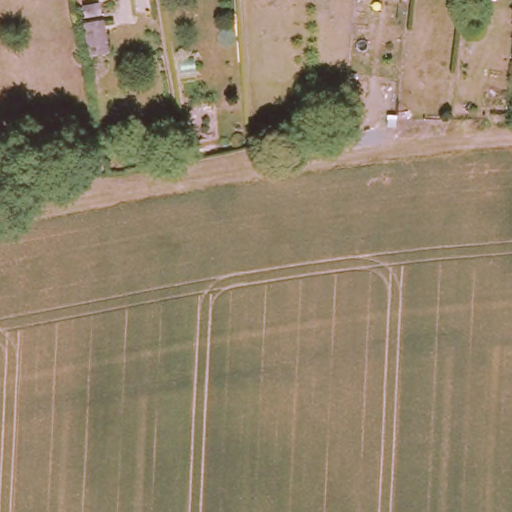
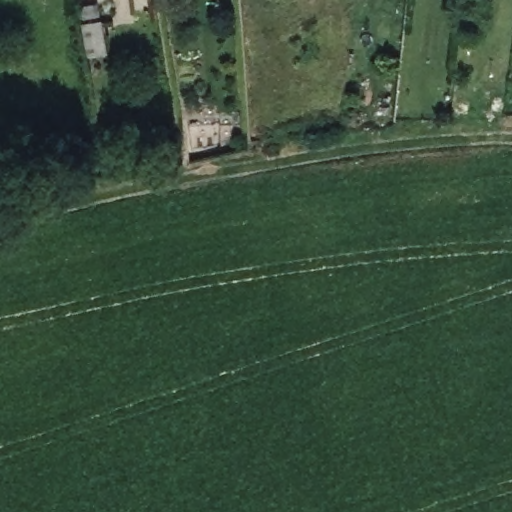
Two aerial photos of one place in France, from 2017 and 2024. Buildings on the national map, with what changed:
unchanged [(85,14),(83,3),(85,2),(95,0),(100,0),(100,3),(102,11),(85,14)]
unchanged [(104,21),(109,49),(92,51),(87,24),(104,21)]

